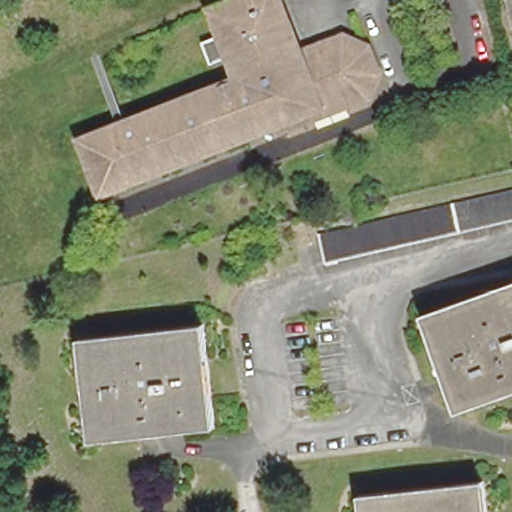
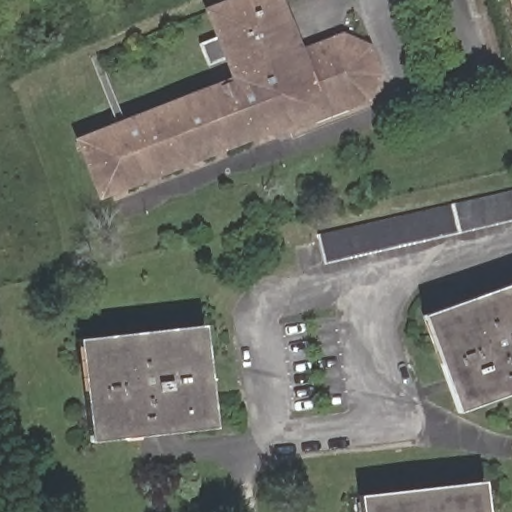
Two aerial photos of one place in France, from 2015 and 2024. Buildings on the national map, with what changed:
unchanged [(88,147),(84,136),(91,133),(239,74),(236,66),(231,53),(212,60),(203,39),(222,31),(217,17),(213,6),(219,4),(228,0),(287,0),(305,47),(349,30),(371,40),(382,69),(376,86),(367,97),(320,115),(317,109),(303,114),(285,121),(271,127),(252,134),(237,140),(221,146),(202,153),(186,160),(170,166),(152,172),(136,179),(117,186),(107,190),(88,147)]
unchanged [(512,225),(319,268),(313,240),(512,195),(512,225)]
unchanged [(512,387),(460,406),(430,317),(512,289),(512,387)]
unchanged [(199,332),(208,422),(93,436),(84,345),(199,332)]
unchanged [(479,488),(482,512),(368,512),(367,499),(479,488)]

